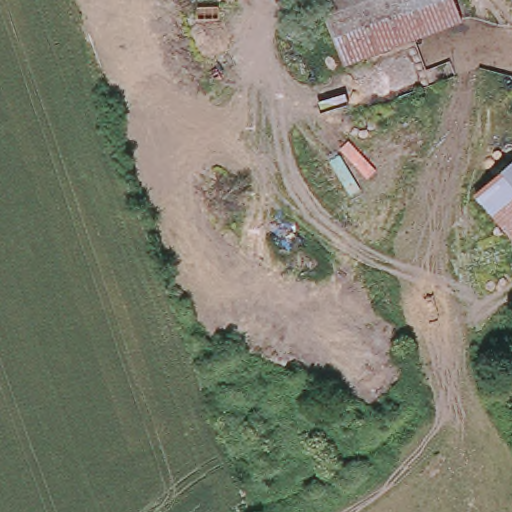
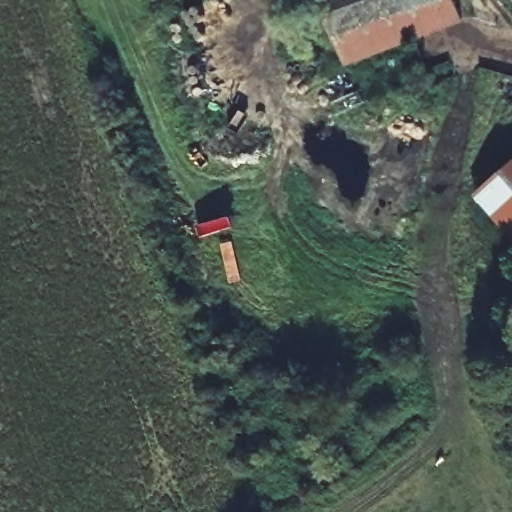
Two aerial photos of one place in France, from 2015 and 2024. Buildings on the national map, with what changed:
unchanged [(346,60),(325,0),(459,0),(466,19),(346,60)]
unchanged [(512,163),(512,230),(479,191),(512,163)]

